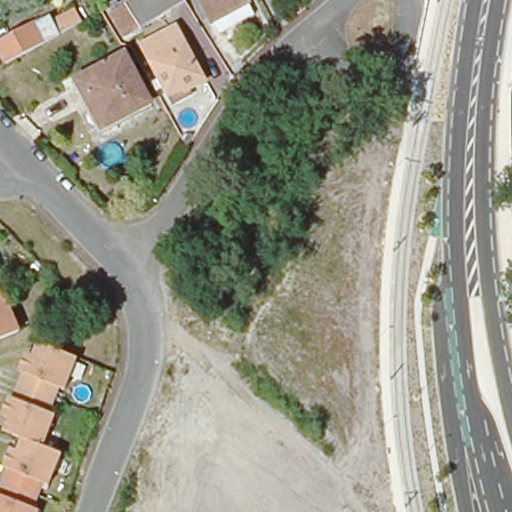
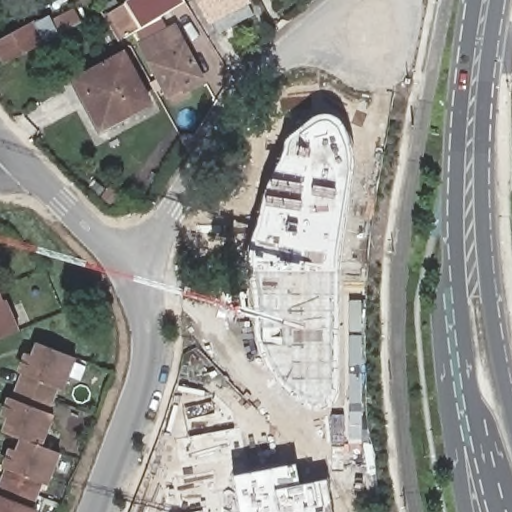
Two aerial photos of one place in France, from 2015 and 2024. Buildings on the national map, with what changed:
unchanged [(119,38),(104,13),(125,0),(180,0),(180,1),(163,12),(119,38)]
unchanged [(198,0),(245,0),(249,10),(213,29),(198,0)]
unchanged [(46,42),(5,64),(0,54),(0,42),(50,16),(53,20),(74,9),(82,22),(46,42)]
unchanged [(177,102),(172,92),(145,46),(175,29),(204,80),(190,88),(193,93),(177,102)]
unchanged [(76,79),(125,54),(152,104),(103,130),(76,79)]
new [(284,150),(285,142),(287,138),(298,129),(312,117),(319,114),(326,114),(340,119),(347,129),(352,145),(353,161),(344,225),(339,287),(339,371),(339,390),(337,398),(331,405),(326,409),(318,411),(309,408),(299,403),(284,389),(273,376),(263,357),(258,340),(256,329),(256,311),(253,290),(249,265),(249,255),(252,242),(255,230),(260,215),(264,199),(267,187),(278,164),(283,154),(284,150)]
unchanged [(1,301),(14,330),(0,336),(0,301),(1,301)]
unchanged [(3,453),(10,456),(15,442),(3,437),(8,426),(2,423),(0,423),(0,406),(1,402),(4,403),(10,388),(14,376),(12,375),(18,358),(26,361),(32,362),(37,350),(67,361),(55,392),(49,390),(45,402),(39,417),(44,419),(33,449),(51,456),(38,487),(31,485),(26,498),(21,512),(0,512),(0,460),(3,453)]
new [(171,488),(173,479),(182,477),(175,440),(188,437),(182,405),(215,396),(232,412),(236,428),(240,428),(248,472),(234,475),(240,512),(162,512),(168,490),(171,488)]
new [(248,472),(296,463),(300,483),(313,481),(327,479),(333,512),(240,512),(234,475),(248,472)]

